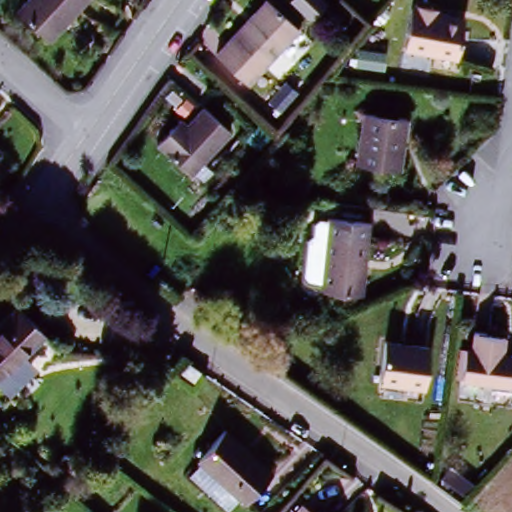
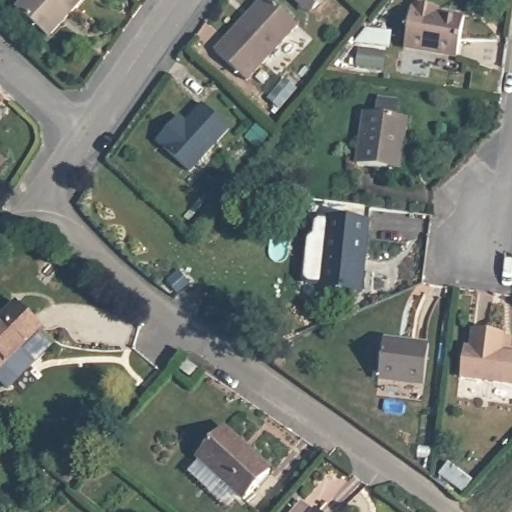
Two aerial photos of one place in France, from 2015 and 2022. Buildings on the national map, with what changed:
unchanged [(25,0),(85,0),(48,38),(16,9),(25,0)]
unchanged [(265,0),(267,0),(298,28),(246,84),(214,54),(265,0)]
unchanged [(457,59),(404,49),(412,7),(416,8),(416,4),(434,7),(440,8),(439,14),(464,18),(457,59)]
unchanged [(229,131),(190,172),(158,141),(170,129),(179,118),(186,125),(203,107),(229,131)]
unchanged [(408,119),(400,171),(356,165),(364,112),(408,119)]
unchanged [(0,159),(6,164),(0,171),(0,159)]
unchanged [(316,294),(323,240),(325,224),(327,208),(369,214),(366,229),(364,245),(361,266),(357,299),(351,299),(316,294)]
unchanged [(14,381),(8,380),(0,373),(0,316),(15,300),(43,328),(25,346),(34,354),(34,360),(14,381)]
unchanged [(472,348),(474,331),(504,335),(502,352),(512,353),(512,386),(462,379),(466,347),(472,348)]
unchanged [(384,341),(429,346),(424,387),(379,381),(384,341)]
unchanged [(190,379),(179,370),(188,361),(198,368),(190,379)]
unchanged [(198,470),(209,459),(203,453),(231,424),(275,465),(248,493),(244,490),(233,502),(198,470)]
unchanged [(296,512),(303,504),(311,512),(296,512)]

